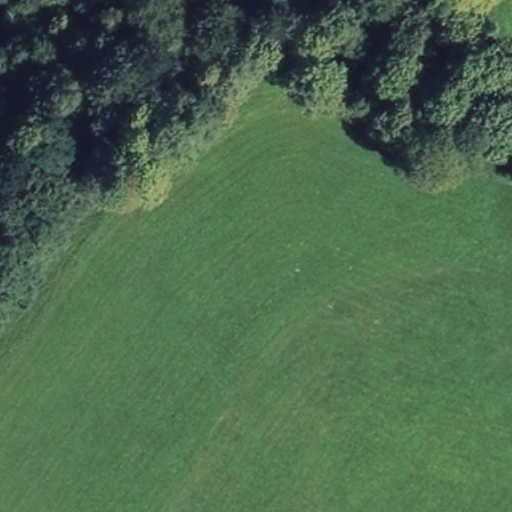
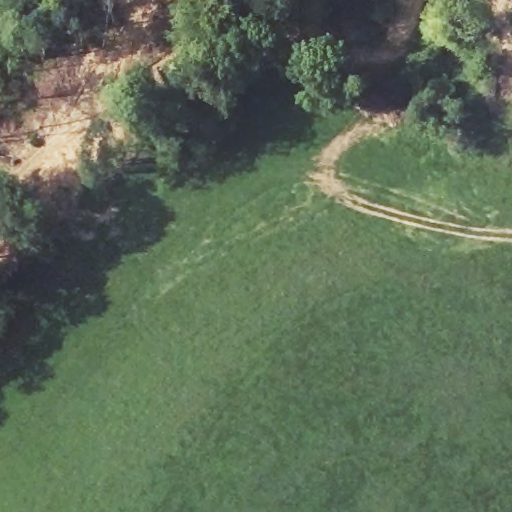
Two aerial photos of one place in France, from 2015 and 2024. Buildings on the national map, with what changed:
[]

